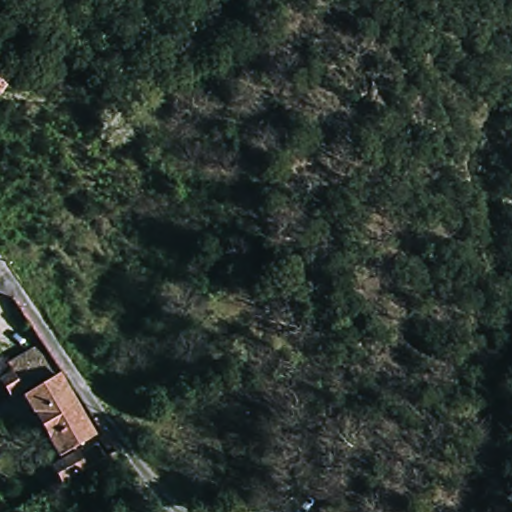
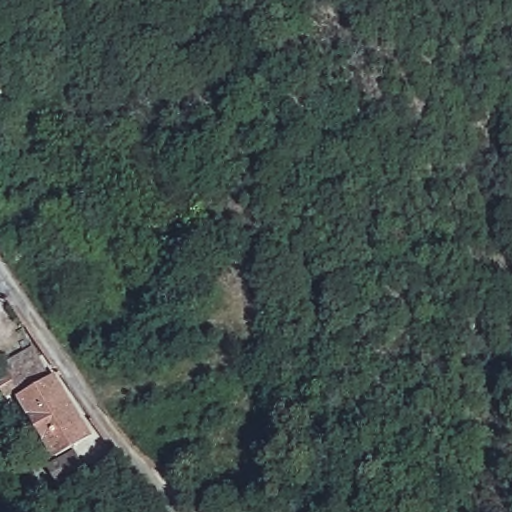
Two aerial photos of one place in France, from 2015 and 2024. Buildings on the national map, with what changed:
unchanged [(11,366),(8,359),(35,344),(89,419),(72,430),(70,427),(41,444),(15,395),(7,399),(0,384),(0,372),(11,366)]
unchanged [(52,463),(41,444),(70,427),(72,430),(89,419),(99,435),(52,463)]
unchanged [(52,470),(78,457),(88,477),(62,490),(52,470)]

